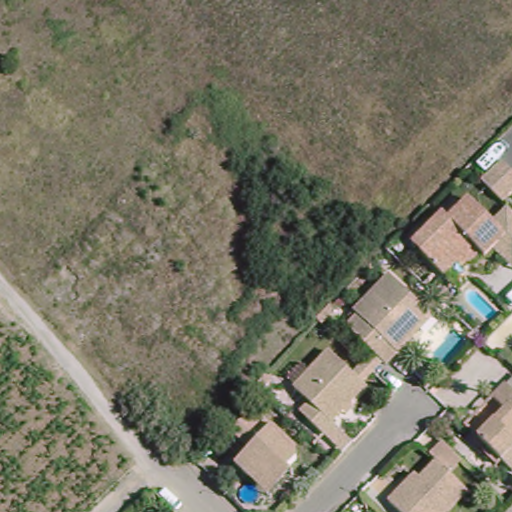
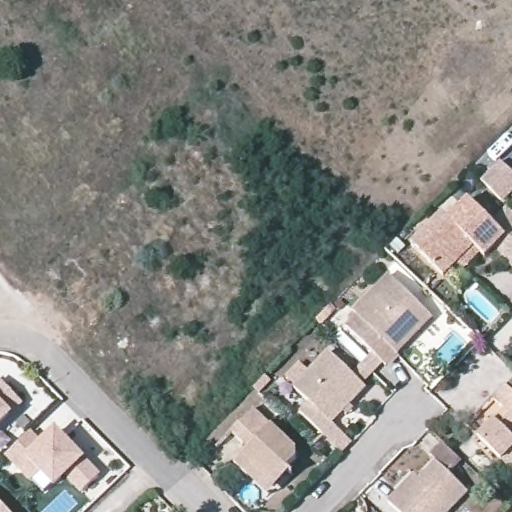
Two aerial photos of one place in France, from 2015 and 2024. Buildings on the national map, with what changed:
unchanged [(502,201),(480,180),(499,160),(512,172),(512,192),(502,201)]
unchanged [(444,265),(412,233),(442,202),(448,208),(468,187),(496,215),(506,225),(490,240),(485,245),(480,240),(470,251),(465,255),(459,250),(444,265)]
unchanged [(506,225),(496,215),(507,202),(512,207),(512,266),(490,240),(506,225)]
unchanged [(396,350),(384,362),(346,325),(358,313),(354,310),(390,275),(424,309),(431,316),(396,350)]
unchanged [(334,350),(369,385),(337,417),(341,422),(329,433),(304,408),(313,399),(299,385),(334,350)]
new [(9,417),(0,425),(0,381),(23,405),(9,417)]
unchanged [(479,438),(506,412),(494,400),(508,385),(512,390),(512,453),(503,462),(479,438)]
unchanged [(247,480),(232,465),(247,450),(231,433),(254,409),(295,450),(296,464),(270,490),(263,495),(247,480)]
new [(41,442),(56,428),(85,460),(100,476),(81,494),(65,477),(54,489),(41,475),(31,485),(5,458),(31,432),(41,442)]
unchanged [(398,486),(414,470),(419,475),(436,459),(465,490),(443,512),(400,512),(387,498),(398,486)]
new [(0,505),(8,512),(0,512),(0,505)]

